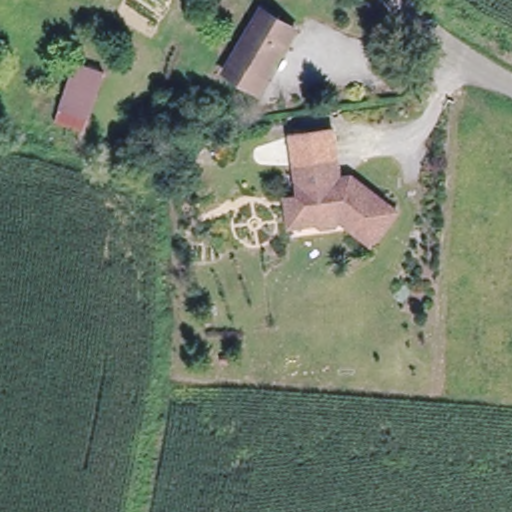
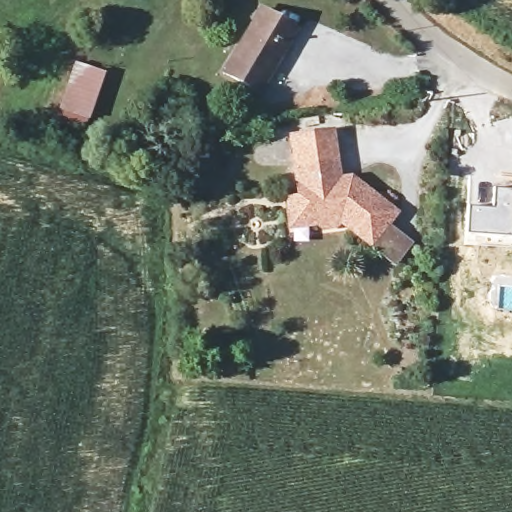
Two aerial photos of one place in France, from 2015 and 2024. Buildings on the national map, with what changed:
unchanged [(297,26),(260,89),(225,70),(261,6),(297,26)]
unchanged [(106,76),(76,141),(49,126),(77,63),(106,76)]
unchanged [(291,138),(333,135),(337,184),(332,195),(321,196),(319,167),(292,169),(291,138)]
unchanged [(282,199),(295,200),(292,169),(319,167),(321,196),(332,195),(337,184),(346,191),(356,180),(396,214),(367,249),(337,224),(328,229),(311,226),(297,229),(282,229),(282,199)]
new [(491,207),(493,187),(512,189),(512,237),(465,235),(468,205),(491,207)]

